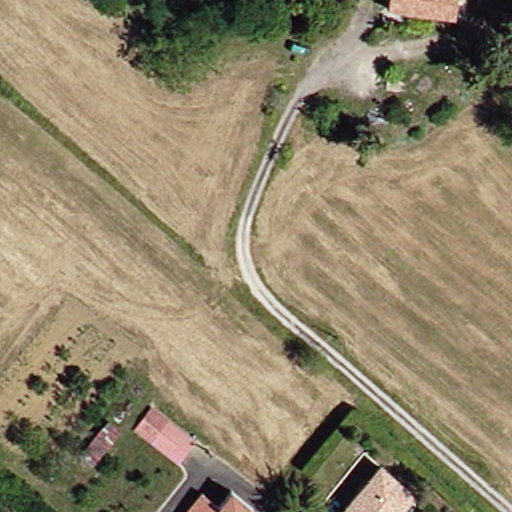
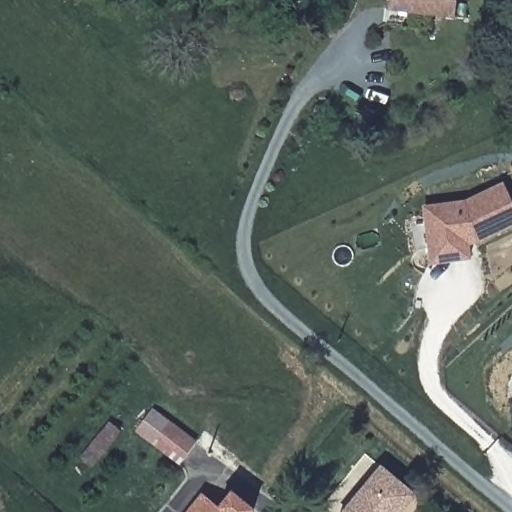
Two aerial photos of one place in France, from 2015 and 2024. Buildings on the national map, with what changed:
unchanged [(456,12),(395,8),(396,0),(457,0),(456,12)]
new [(465,203),(503,184),(512,202),(512,225),(477,242),(431,248),(426,208),(465,203)]
unchanged [(150,409),(188,440),(192,443),(174,467),(169,463),(132,433),(150,409)]
new [(109,424),(119,434),(89,467),(78,457),(109,424)]
unchanged [(339,512),(376,471),(403,496),(389,512),(339,512)]
unchanged [(186,512),(198,497),(213,508),(225,494),(245,510),(243,512),(186,512)]

